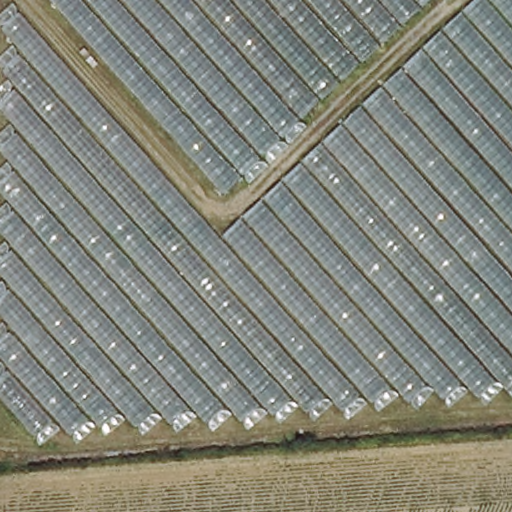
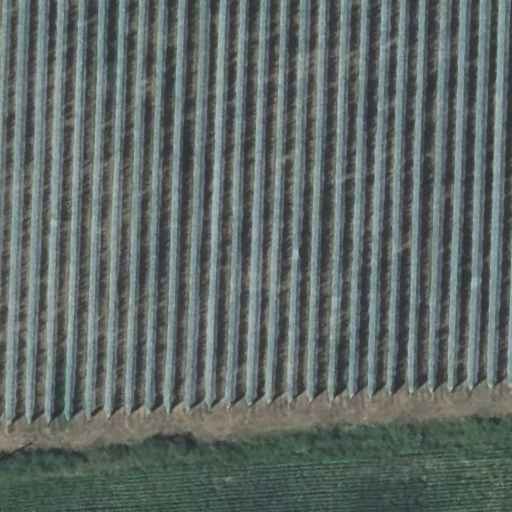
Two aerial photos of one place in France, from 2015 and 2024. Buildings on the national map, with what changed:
demolished [(0,390),(0,181),(4,1),(4,0),(512,0),(512,404),(30,435),(0,390)]

